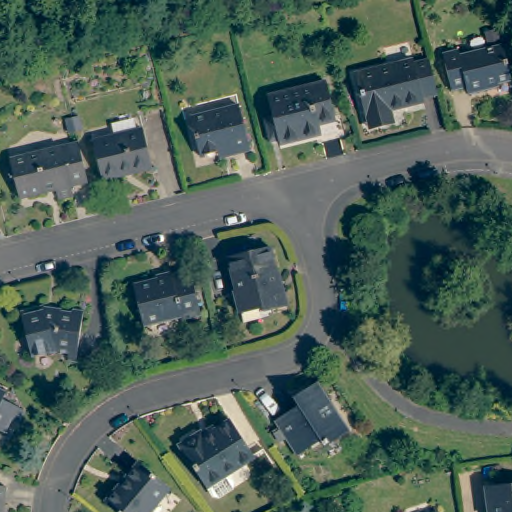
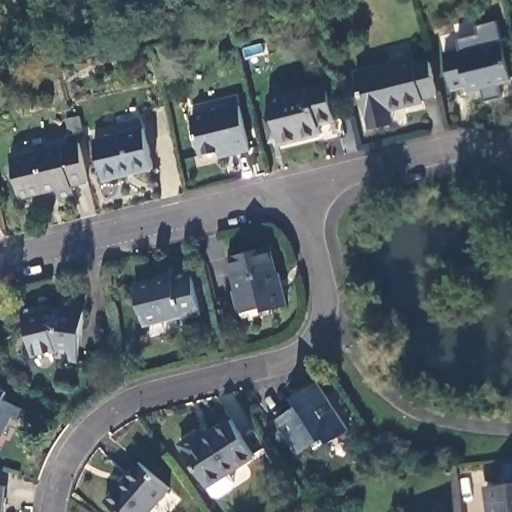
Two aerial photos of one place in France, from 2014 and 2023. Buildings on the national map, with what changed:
unchanged [(442,53),(457,49),(458,54),(501,45),(510,79),(485,85),(486,89),(467,93),(466,86),(450,90),(442,53)]
unchanged [(422,97),(422,101),(389,109),(390,116),(369,122),(367,115),(365,115),(355,74),(413,60),(413,64),(427,61),(435,94),(422,97)]
unchanged [(262,117),(271,115),(267,97),(325,82),(333,120),(317,124),(320,134),(278,143),(277,139),(268,141),(262,117)]
unchanged [(248,149),(233,153),(231,148),(199,155),(189,117),(237,105),(248,149)]
unchanged [(141,131),(151,167),(102,179),(92,141),(141,131)]
unchanged [(70,185),(72,195),(59,198),(55,189),(19,197),(11,158),(77,142),(86,182),(70,185)]
unchanged [(270,247),(276,273),(277,273),(285,306),(263,311),(262,308),(239,312),(234,291),(236,290),(229,257),(270,247)]
unchanged [(190,272),(200,315),(180,320),(179,315),(143,323),(134,285),(190,272)]
unchanged [(75,359),(51,356),(30,360),(20,315),(41,310),(41,315),(59,318),(59,316),(70,317),(71,315),(81,316),(75,359)]
unchanged [(346,430),(322,446),(317,440),(295,454),(273,421),(296,406),(291,398),(316,383),(346,430)]
unchanged [(11,417),(5,431),(0,429),(0,389),(6,392),(2,400),(16,407),(25,411),(19,422),(11,417)]
unchanged [(231,488),(217,496),(211,495),(206,486),(205,486),(179,444),(199,431),(202,436),(230,419),(252,456),(226,473),(232,482),(231,488)]
unchanged [(167,488),(147,512),(117,512),(105,502),(139,462),(167,488)]
unchanged [(512,483),(512,512),(489,512),(485,486),(512,483)]
unchanged [(3,503),(1,503),(0,511),(0,486),(5,487),(3,503)]

